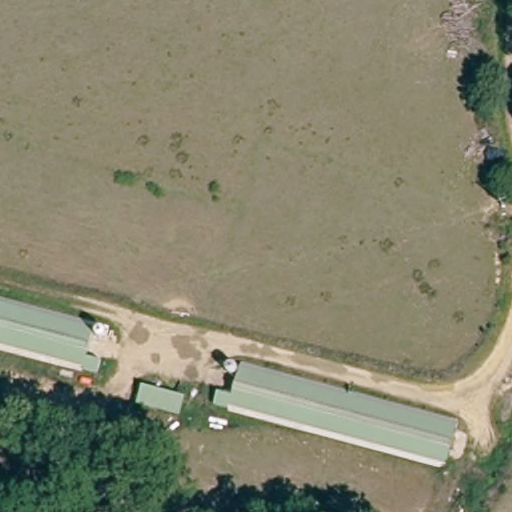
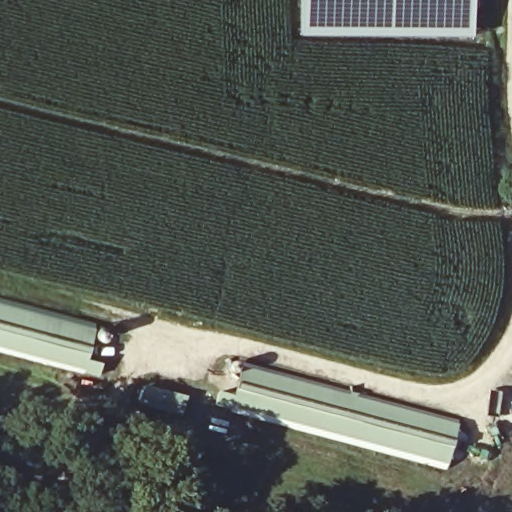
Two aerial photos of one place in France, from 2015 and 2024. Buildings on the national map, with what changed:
new [(473,35),(303,35),(303,0),(473,0),(473,35)]
unchanged [(0,345),(0,294),(110,320),(102,350),(117,354),(112,372),(0,345)]
unchanged [(212,405),(216,387),(231,391),(240,359),(457,410),(446,460),(212,405)]

